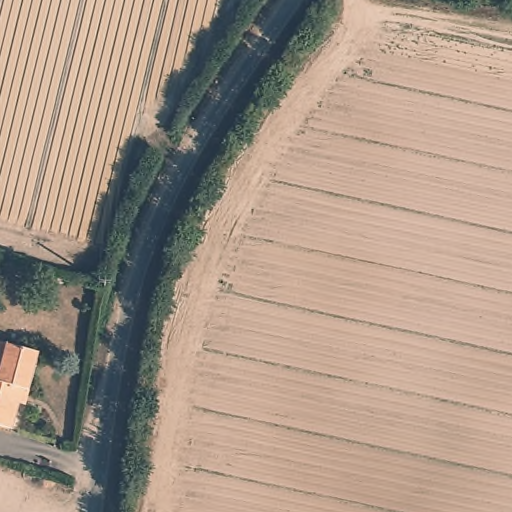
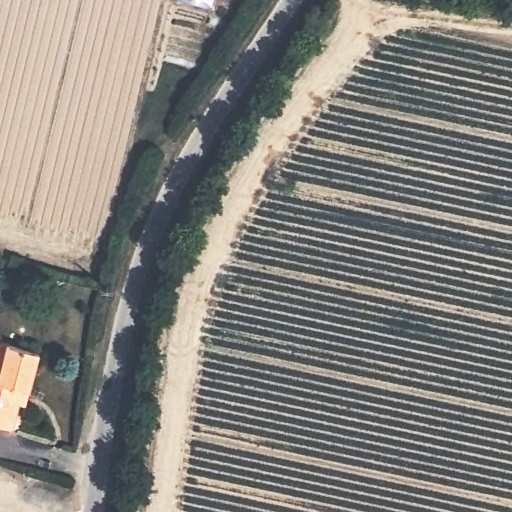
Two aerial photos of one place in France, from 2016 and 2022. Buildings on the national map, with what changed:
unchanged [(15,275),(4,322),(0,321),(0,270),(15,275)]
unchanged [(40,352),(32,388),(25,388),(14,430),(0,426),(0,341),(40,352)]

